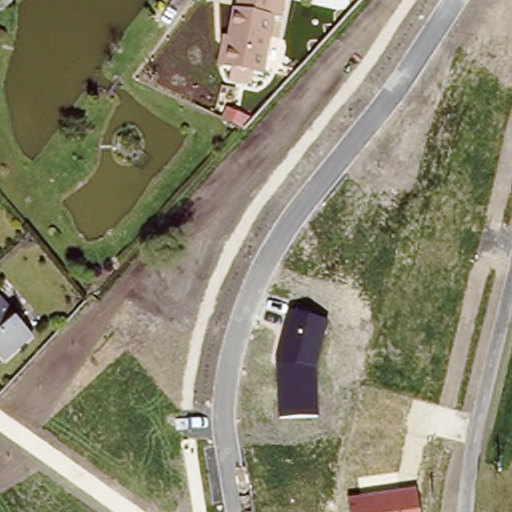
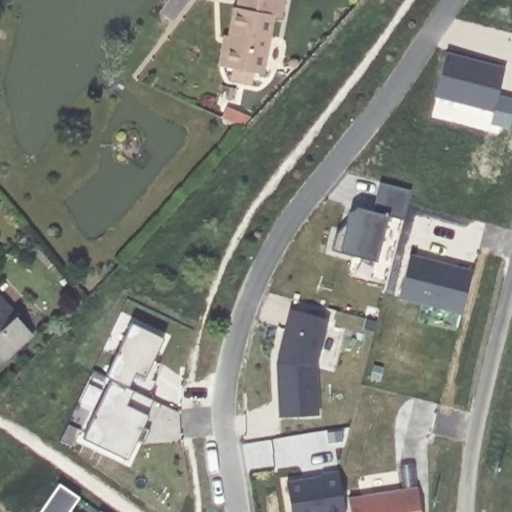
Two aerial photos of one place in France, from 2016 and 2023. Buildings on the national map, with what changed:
unchanged [(229,80),(230,68),(221,66),(234,5),(238,6),(239,0),(286,0),(282,20),(274,18),(262,75),(253,73),(249,84),(229,80)]
new [(495,112),(434,97),(445,53),(505,68),(495,112)]
new [(336,233),(347,222),(349,213),(358,208),(372,211),(380,182),(411,190),(403,220),(388,217),(377,262),(331,251),(336,233)]
new [(462,312),(398,297),(409,254),(472,270),(462,312)]
unchanged [(31,336),(3,362),(0,359),(0,303),(31,336)]
unchanged [(278,419),(274,367),(287,309),(329,318),(317,367),(318,416),(278,419)]
new [(153,361),(159,364),(152,381),(153,381),(145,395),(151,398),(145,414),(148,415),(143,426),(149,430),(143,443),(136,439),(127,459),(82,437),(111,380),(106,378),(132,324),(163,337),(153,361)]
new [(321,475),(321,473),(338,471),(344,512),(290,512),(284,481),(321,475)]
new [(101,511),(101,512),(39,512),(60,483),(80,497),(101,511)]
unchanged [(416,487),(420,512),(349,512),(347,499),(416,487)]

